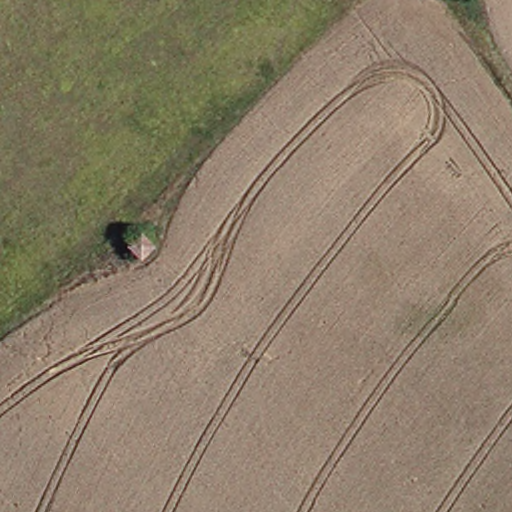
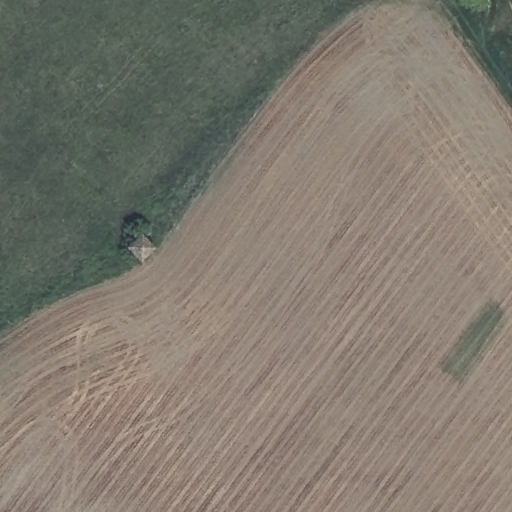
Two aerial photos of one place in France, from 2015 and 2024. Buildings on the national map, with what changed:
unchanged [(154,246),(140,259),(129,247),(142,234),(154,246)]

